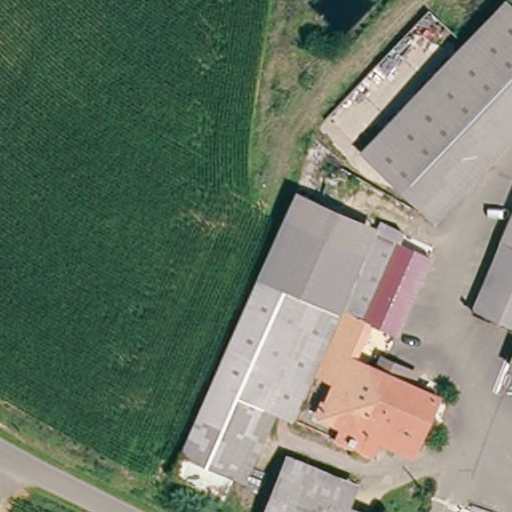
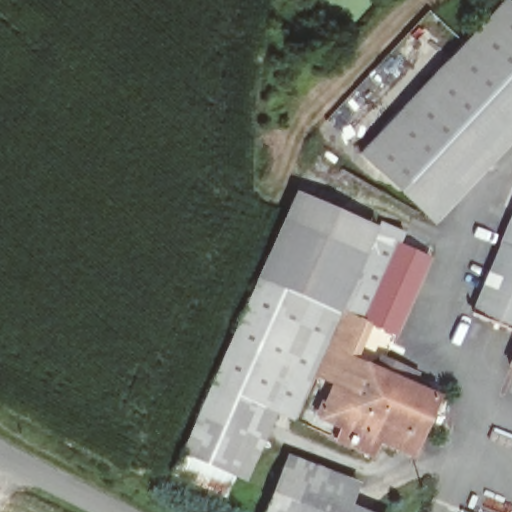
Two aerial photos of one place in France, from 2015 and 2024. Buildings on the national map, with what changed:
unchanged [(427,204),(372,151),(492,29),(512,9),(512,116),(449,181),(427,204)]
unchanged [(441,218),(438,215),(427,204),(449,181),(512,116),(512,145),(444,216),(441,218)]
unchanged [(396,242),(358,328),(256,285),(296,185),(403,227),(396,242)]
unchanged [(512,229),(512,312),(508,323),(491,315),(476,308),(491,275),(498,259),(512,229)]
unchanged [(377,369),(347,356),(358,328),(396,242),(410,248),(425,254),(377,369)]
unchanged [(299,405),(291,423),(258,409),(214,391),(256,285),(358,328),(347,356),(332,392),(324,414),(299,405)]
unchanged [(512,343),(512,361),(505,358),(512,343)]
unchanged [(391,418),(332,392),(347,356),(377,369),(393,376),(397,365),(431,379),(426,391),(436,395),(415,450),(384,436),(391,418)]
unchanged [(258,409),(230,479),(185,461),(214,391),(258,409)]
unchanged [(377,433),(368,454),(337,442),(345,423),(324,414),(332,392),(391,418),(384,436),(377,433)]
unchanged [(307,461),(288,512),(265,512),(287,453),(307,461)]
unchanged [(360,481),(354,501),(382,512),(288,512),(307,461),(360,481)]

